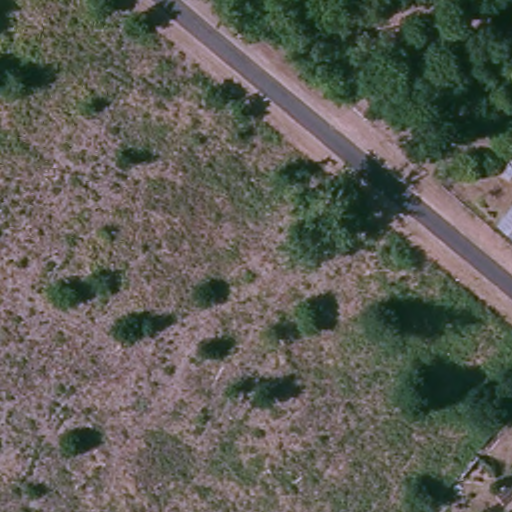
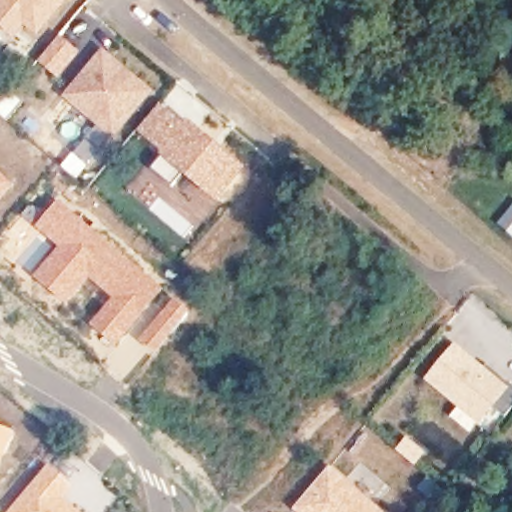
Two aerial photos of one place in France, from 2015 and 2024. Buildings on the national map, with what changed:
new [(25,25),(13,39),(0,27),(0,0),(70,0),(37,36),(25,25)]
new [(153,91),(113,138),(61,97),(103,47),(153,91)]
new [(178,83),(203,107),(200,110),(194,105),(186,114),(246,169),(216,203),(181,175),(171,186),(150,167),(160,156),(134,132),(178,83)]
new [(13,109),(17,102),(22,106),(9,122),(0,115),(0,98),(13,109)]
new [(13,182),(0,198),(0,172),(13,182)]
new [(56,247),(33,227),(58,199),(139,266),(164,288),(114,347),(88,325),(110,298),(89,278),(64,306),(32,276),(56,247)]
unchanged [(512,215),(512,234),(502,226),(512,215)]
new [(173,297),(189,310),(153,353),(137,339),(173,297)]
new [(487,361),(512,382),(512,408),(506,416),(495,407),(479,424),(423,380),(456,342),(483,367),(487,361)]
new [(13,432),(0,458),(0,425),(13,432)]
new [(73,486),(64,497),(81,512),(7,512),(47,463),(73,486)]
new [(331,463),(385,512),(296,512),(291,508),(331,463)]

